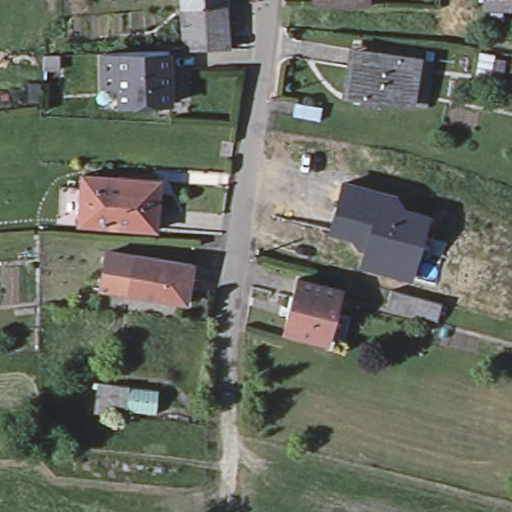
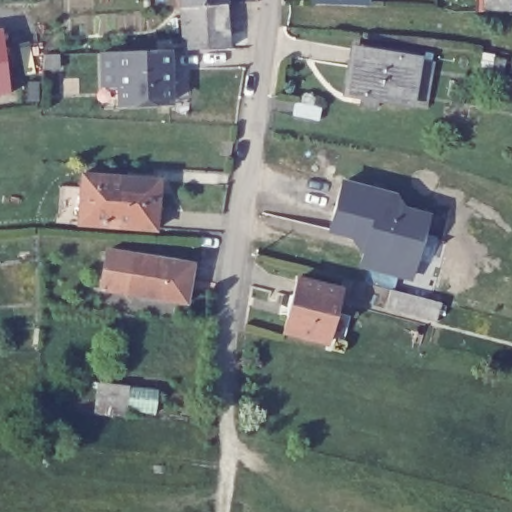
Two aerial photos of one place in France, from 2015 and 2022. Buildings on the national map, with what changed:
unchanged [(180,4),(180,0),(225,0),(225,1),(180,4)]
unchanged [(512,10),(504,11),(501,25),(481,25),(480,11),(479,0),(512,0),(512,1),(512,10)]
unchanged [(180,4),(225,1),(230,44),(183,45),(180,4)]
new [(2,26),(11,90),(0,92),(0,27),(2,26)]
unchanged [(119,48),(168,46),(170,98),(120,100),(119,48)]
unchanged [(347,90),(350,62),(358,63),(358,58),(360,46),(419,55),(417,65),(412,100),(380,95),(378,104),(363,103),(365,93),(347,90)]
unchanged [(82,170),(158,175),(155,225),(78,219),(82,170)]
unchanged [(415,277),(394,272),(357,262),(362,238),(324,228),(334,185),(335,182),(385,194),(391,203),(390,207),(420,214),(415,234),(426,236),(415,277)]
unchanged [(192,262),(185,300),(125,289),(102,284),(108,248),(132,252),(132,250),(192,262)]
unchanged [(343,337),(327,333),(325,340),(282,329),(287,312),(290,312),(295,295),(292,294),(297,275),(340,287),(334,307),(351,312),(343,337)]
unchanged [(386,292),(393,294),(437,304),(434,319),(383,307),(386,292)]
unchanged [(157,382),(153,414),(95,409),(97,379),(157,382)]

